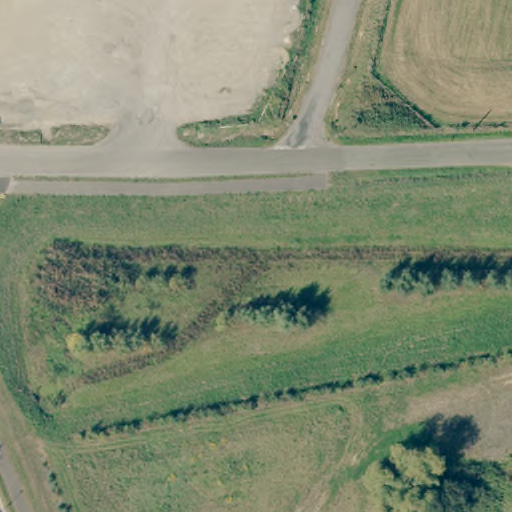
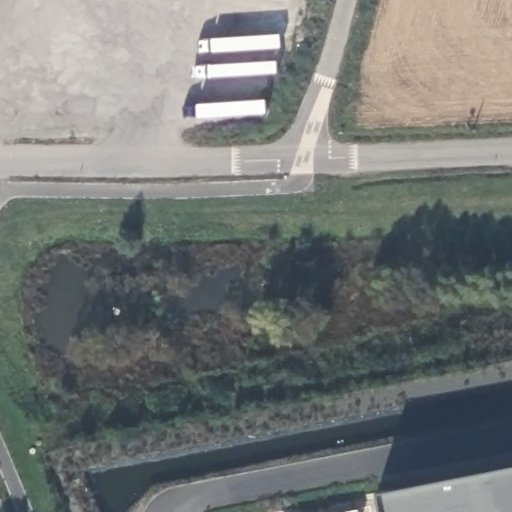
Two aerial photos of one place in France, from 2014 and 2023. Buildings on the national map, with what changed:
new [(377,491),(512,464),(512,512),(381,512),(377,491)]

